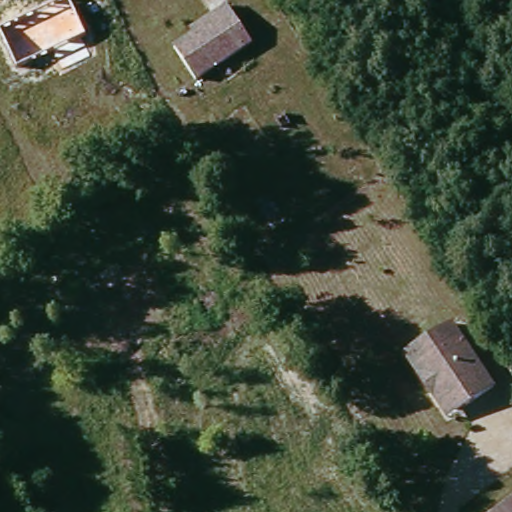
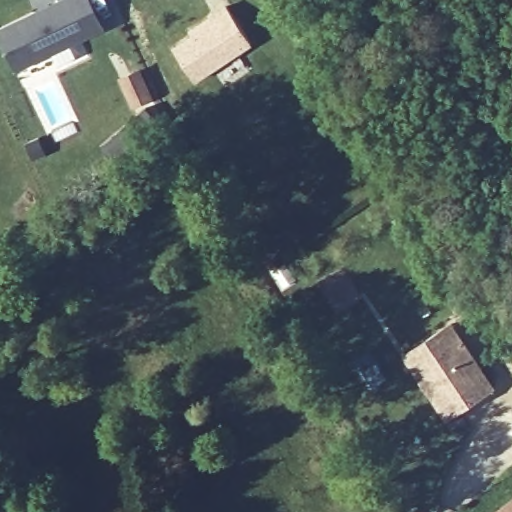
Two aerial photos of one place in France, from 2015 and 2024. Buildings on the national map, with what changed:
unchanged [(67,0),(72,0),(88,35),(18,67),(2,29),(67,0)]
unchanged [(205,35),(200,30),(221,15),(235,7),(260,44),(203,81),(183,49),(205,35)]
new [(139,74),(150,101),(132,109),(121,82),(139,74)]
unchanged [(445,410),(423,376),(410,356),(424,346),(455,325),(497,390),(469,408),(451,420),(445,410)]
unchanged [(512,512),(489,512),(512,497),(512,512)]

